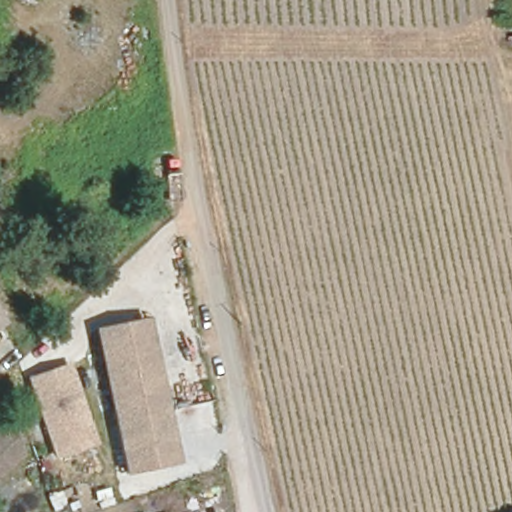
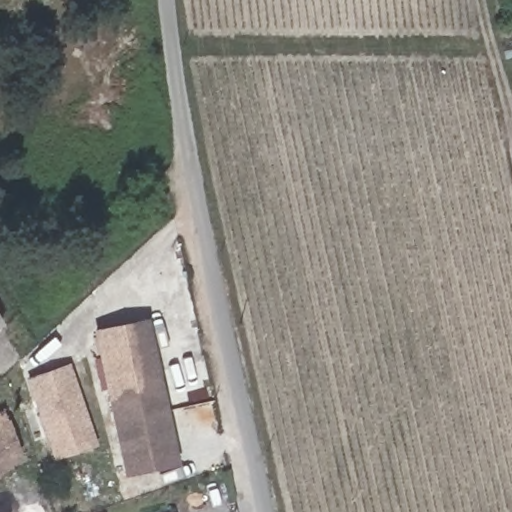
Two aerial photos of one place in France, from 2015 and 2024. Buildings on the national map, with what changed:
unchanged [(170,467),(121,476),(94,333),(143,324),(170,467)]
unchanged [(90,442),(52,454),(29,383),(27,376),(46,370),(65,364),(90,442)]
unchanged [(19,455),(0,474),(0,412),(3,410),(19,455)]

